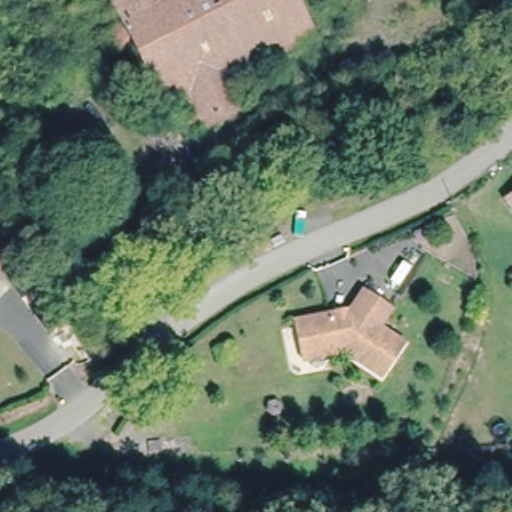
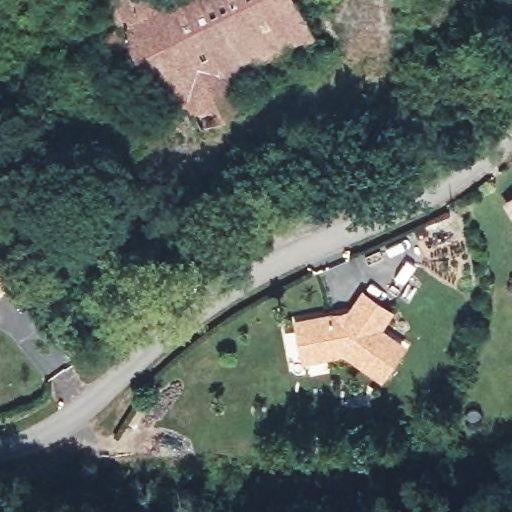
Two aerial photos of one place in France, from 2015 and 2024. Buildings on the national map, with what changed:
unchanged [(247,106),(201,130),(187,102),(169,111),(131,39),(111,49),(87,2),(91,0),(295,0),(313,37),(233,78),(247,106)]
unchanged [(389,305),(377,323),(402,340),(381,370),(345,346),(305,354),(297,317),(330,311),(353,306),(365,289),(389,305)]

